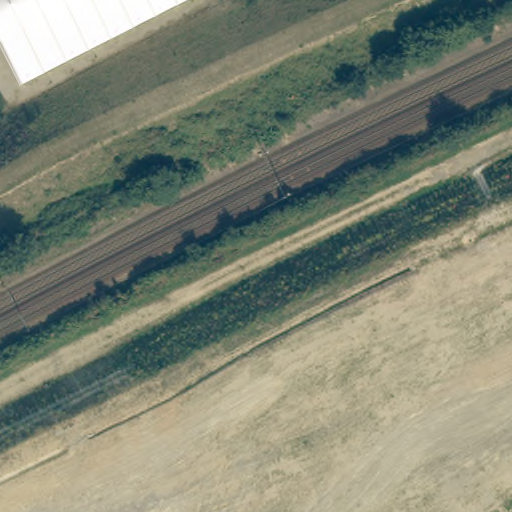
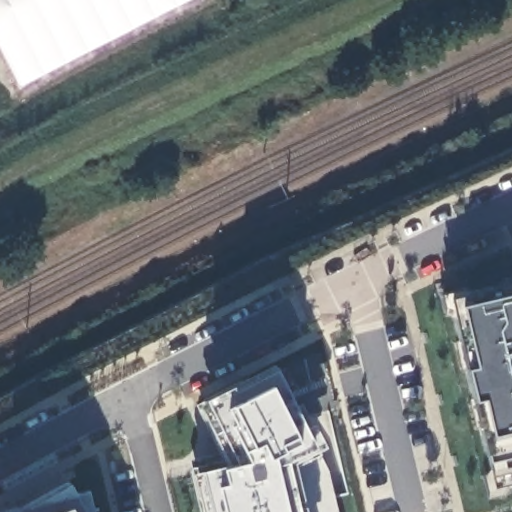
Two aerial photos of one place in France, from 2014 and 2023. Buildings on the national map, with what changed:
unchanged [(20,86),(0,46),(0,0),(191,0),(20,86)]
new [(491,474),(488,460),(472,399),(466,366),(452,310),(442,313),(440,292),(512,276),(512,482),(507,483),(511,493),(487,498),(482,479),(491,474)]
new [(222,465),(199,405),(206,399),(231,385),(234,388),(276,369),(302,425),(313,422),(323,443),(310,445),(288,456),(303,512),(211,512),(201,470),(222,465)]
new [(73,492),(82,512),(10,512),(27,503),(73,492)]

